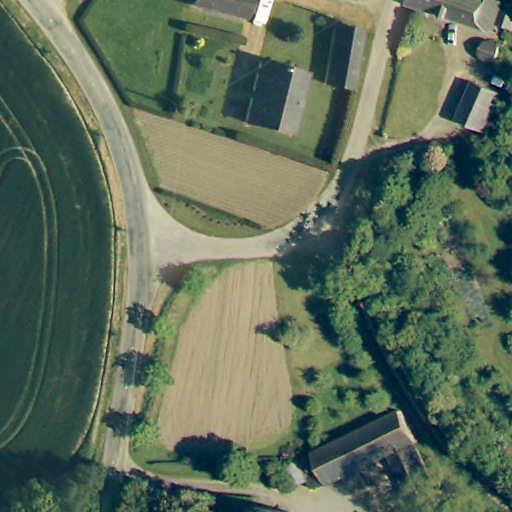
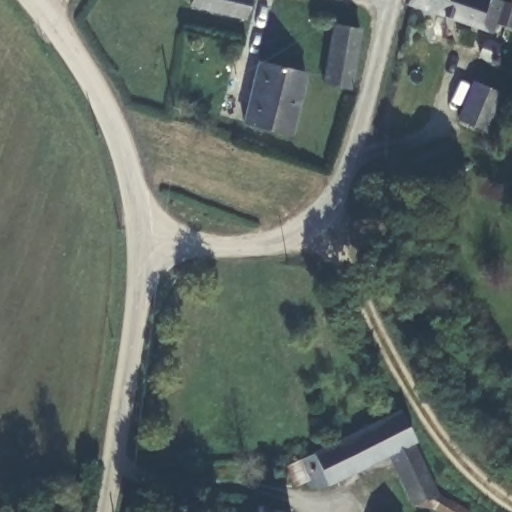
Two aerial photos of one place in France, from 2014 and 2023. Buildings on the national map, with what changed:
unchanged [(249,18),(192,4),(192,0),(253,0),(249,18)]
unchanged [(498,21),(495,29),(415,7),(407,5),(409,0),(512,0),(512,25),(498,21)]
unchanged [(364,28),(351,87),(322,81),(335,22),(364,28)]
unchanged [(498,43),(501,53),(497,57),(489,60),(484,56),(482,51),(483,44),(491,41),(498,43)]
unchanged [(307,71),(292,133),(245,119),(260,58),(307,71)]
unchanged [(505,94),(488,133),(462,122),(479,83),(505,94)]
unchanged [(402,413),(418,445),(414,447),(390,459),(332,487),(311,490),(300,463),(326,449),(338,443),(394,417),(402,413)]
unchanged [(390,459),(414,447),(438,496),(469,512),(425,512),(415,508),(390,459)]
unchanged [(292,509),(291,512),(257,512),(259,503),(292,509)]

